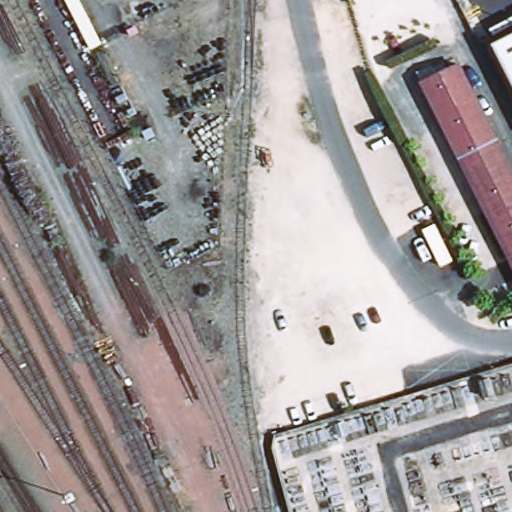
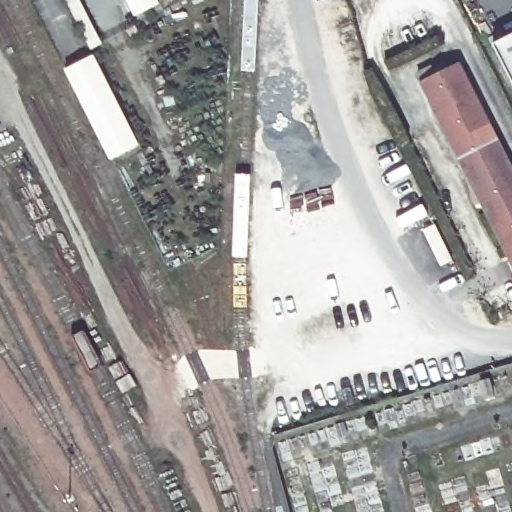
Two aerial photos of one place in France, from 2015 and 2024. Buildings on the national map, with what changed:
unchanged [(512,41),(512,83),(494,50),(512,41)]
new [(65,71),(94,56),(140,146),(111,161),(65,71)]
unchanged [(511,172),(512,174),(512,262),(471,181),(422,83),(456,66),(511,172)]

